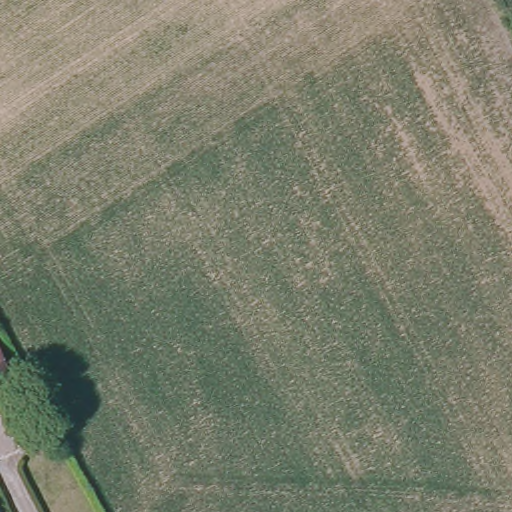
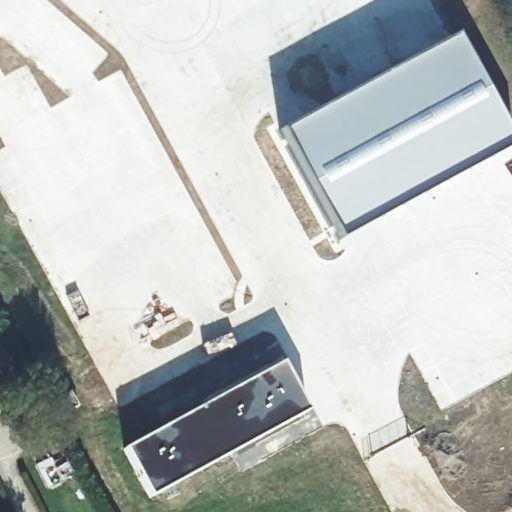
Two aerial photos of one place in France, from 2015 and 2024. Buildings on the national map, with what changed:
new [(512,141),(512,147),(339,241),(280,131),(456,37),(512,141)]
new [(306,412),(151,497),(123,449),(282,364),(306,412)]

